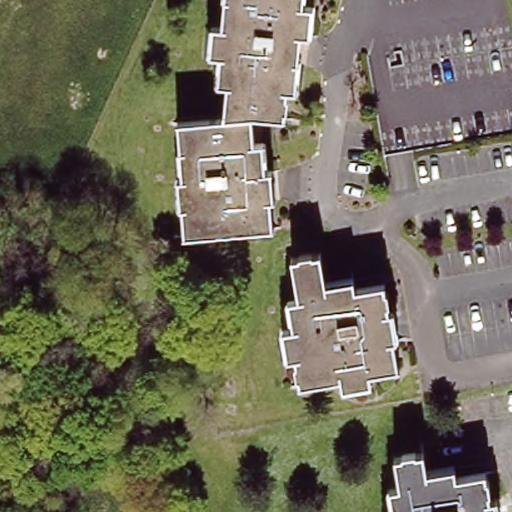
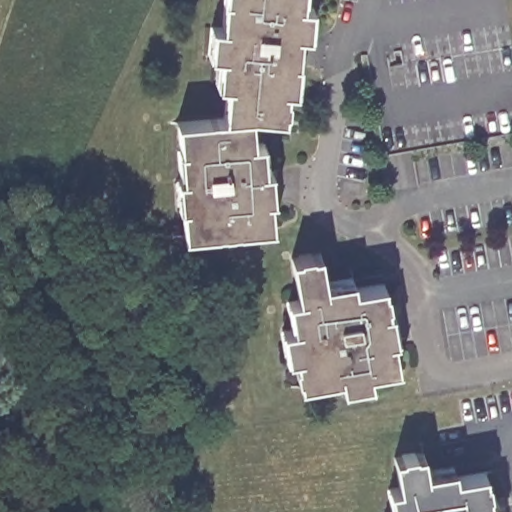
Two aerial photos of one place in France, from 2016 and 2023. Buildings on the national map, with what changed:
unchanged [(185,208),(182,207),(180,178),(185,177),(180,123),(225,119),(228,85),(220,84),(221,56),(212,55),(215,26),(224,27),(227,0),(306,0),(305,7),(315,8),(312,36),(302,35),(298,90),(290,90),(287,118),(254,115),(256,144),(265,144),(267,171),(273,171),(275,200),(272,200),(275,228),(187,236),(185,208)]
unchanged [(297,385),(292,357),(284,358),(279,329),(290,328),(285,300),(295,298),(288,258),(316,253),(322,284),(350,279),(352,289),(380,284),(386,311),(388,311),(393,339),(390,340),(395,367),(366,373),(368,383),(340,389),(337,378),(297,385)]
unchanged [(496,499),(498,512),(395,512),(391,489),(401,487),(396,458),(425,453),(428,473),(456,468),(458,478),(486,473),(491,500),(496,499)]

